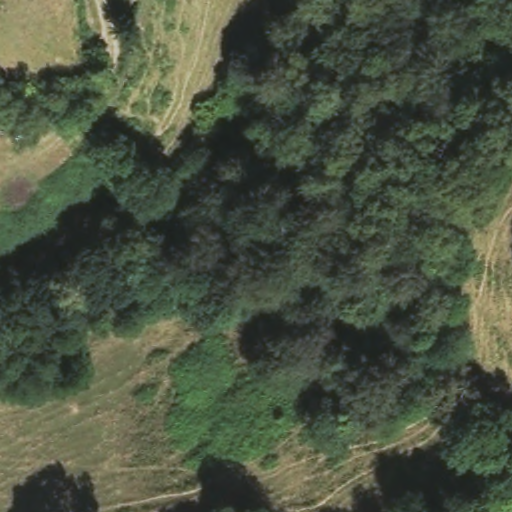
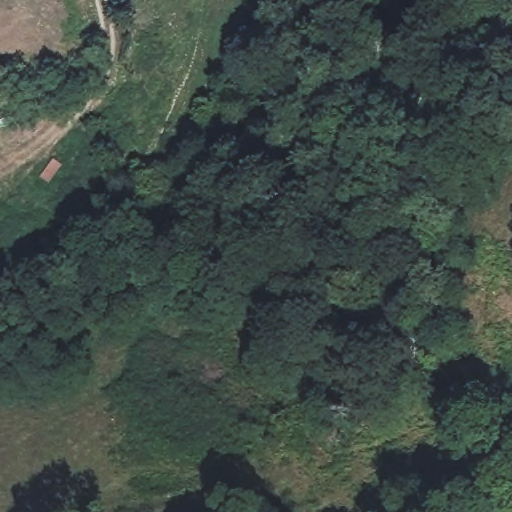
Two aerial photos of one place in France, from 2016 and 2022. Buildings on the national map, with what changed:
[]

